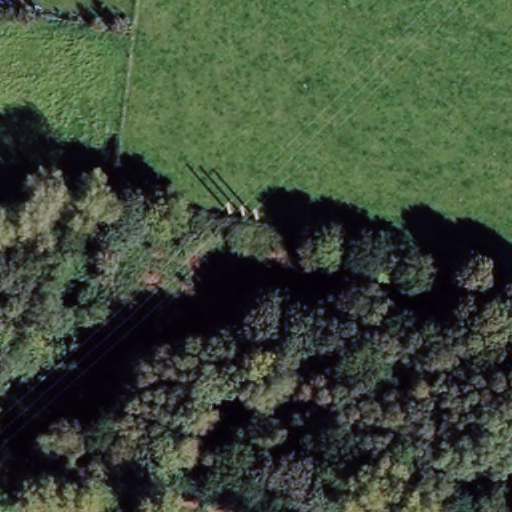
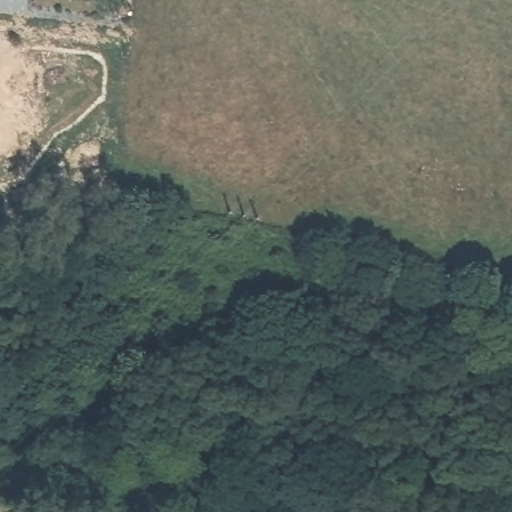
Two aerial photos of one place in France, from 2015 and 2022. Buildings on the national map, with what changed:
[]

